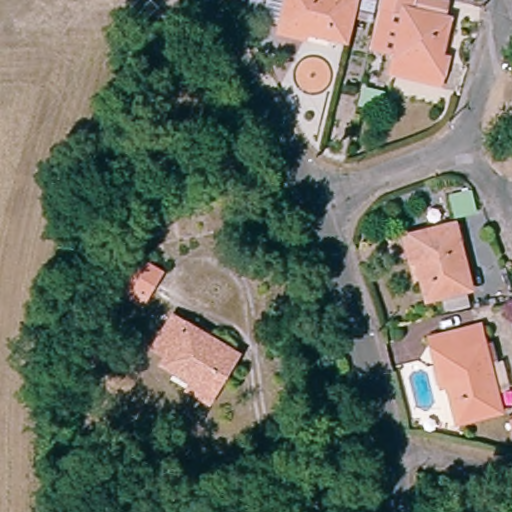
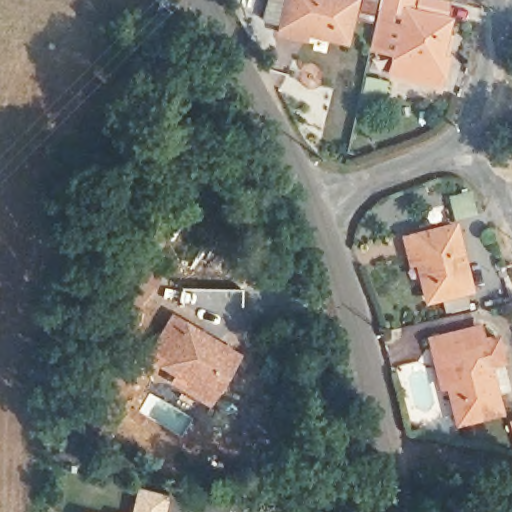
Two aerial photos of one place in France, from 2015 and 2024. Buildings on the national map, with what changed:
unchanged [(288,0),(302,0),(306,1),(306,0),(335,0),(352,4),(344,47),(298,37),(297,44),(280,41),(288,0)]
unchanged [(436,69),(443,71),(440,86),(392,76),(405,15),(377,10),(379,0),(412,0),(408,16),(445,24),(436,69)]
unchanged [(116,213),(131,221),(122,233),(108,225),(116,213)]
unchanged [(451,231),(454,247),(460,246),(470,289),(431,300),(420,256),(414,255),(411,239),(451,231)]
unchanged [(109,290),(115,281),(128,257),(161,275),(147,298),(141,308),(109,290)]
unchanged [(512,273),(512,292),(485,299),(481,282),(512,273)]
unchanged [(172,322),(237,359),(209,407),(170,385),(173,379),(160,371),(164,362),(152,355),(172,322)]
unchanged [(461,341),(464,354),(483,351),(498,418),(459,427),(443,361),(435,361),(432,347),(461,341)]
unchanged [(512,421),(512,441),(507,422),(512,421)]
new [(169,494),(165,512),(129,512),(135,486),(169,494)]

